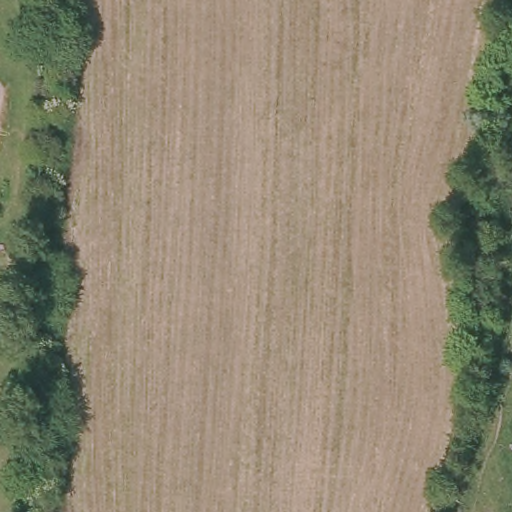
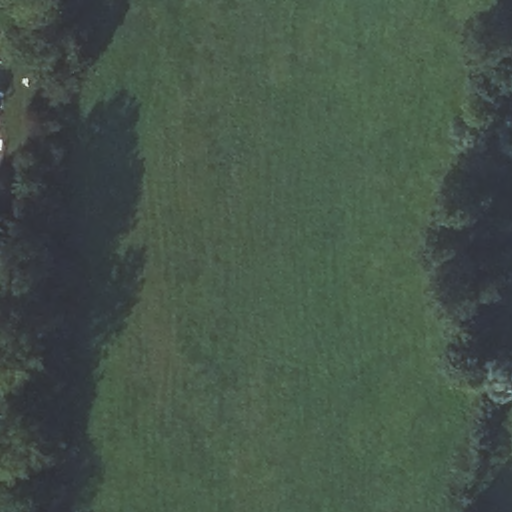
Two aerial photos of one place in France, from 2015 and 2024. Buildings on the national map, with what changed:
[]

